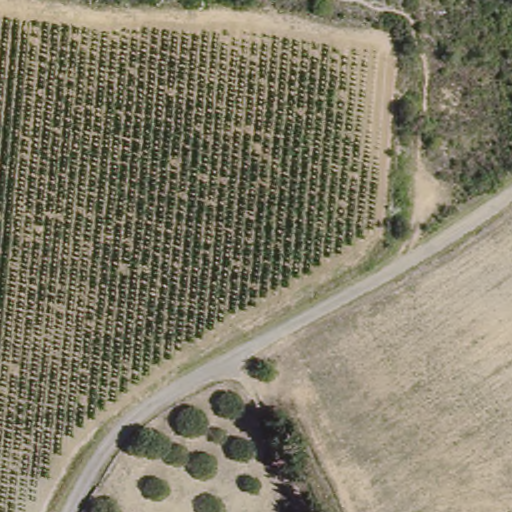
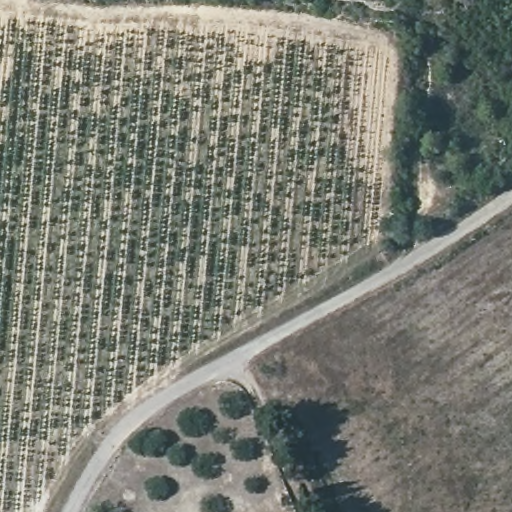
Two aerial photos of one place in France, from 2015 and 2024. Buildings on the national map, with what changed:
[]

